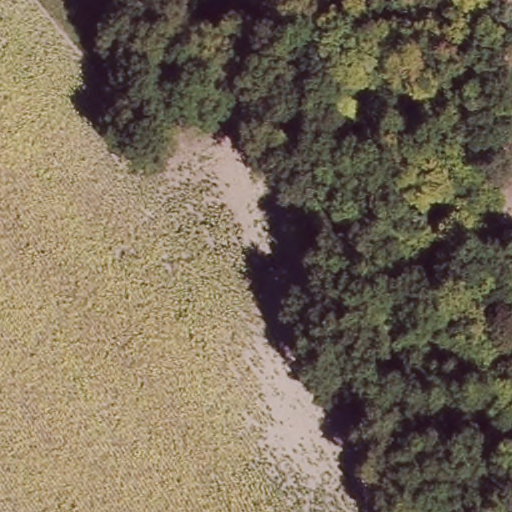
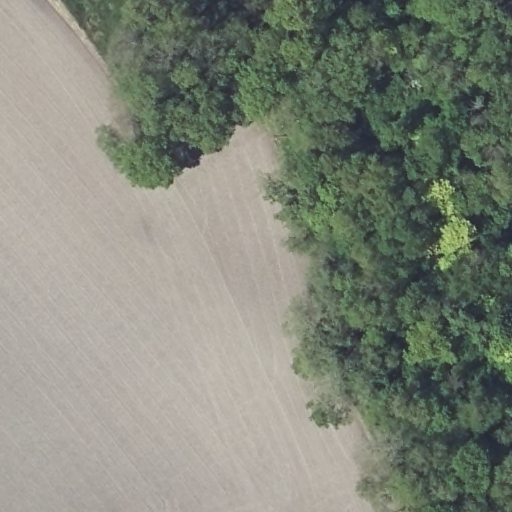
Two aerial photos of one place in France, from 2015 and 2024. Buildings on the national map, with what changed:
[]

